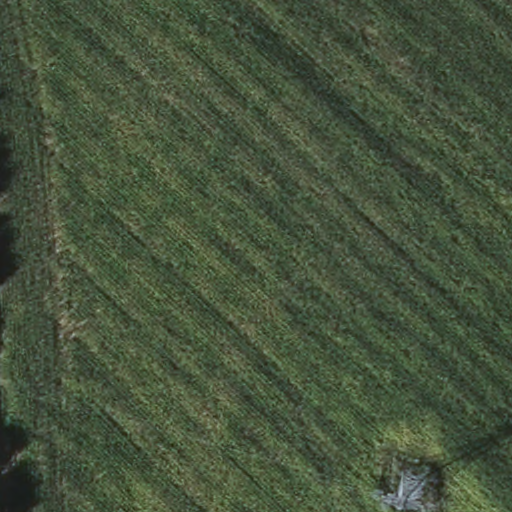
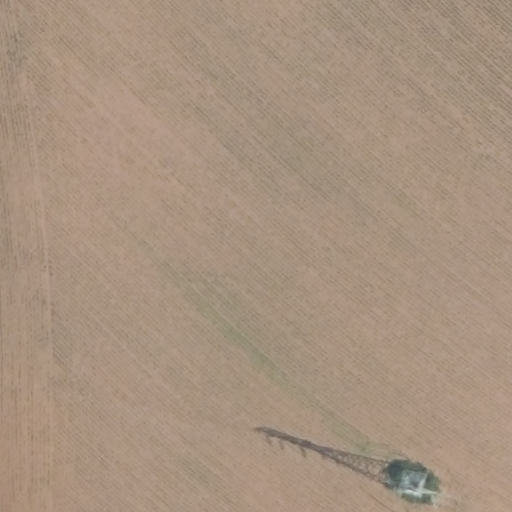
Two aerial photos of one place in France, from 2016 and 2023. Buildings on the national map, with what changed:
[]

